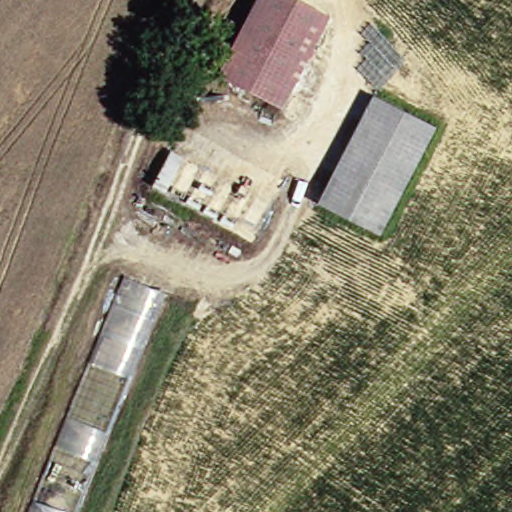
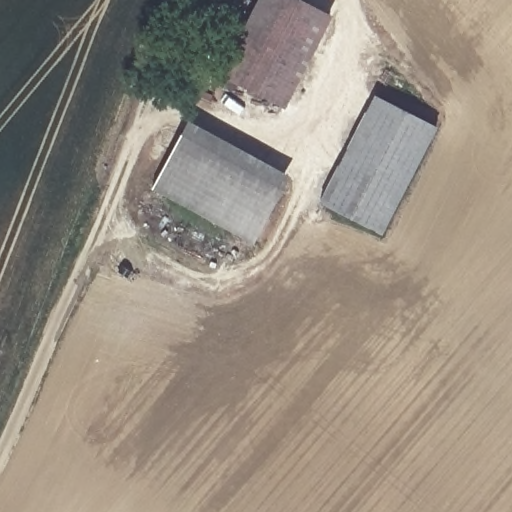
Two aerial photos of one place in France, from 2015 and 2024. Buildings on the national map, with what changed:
unchanged [(226,70),(267,0),(302,0),(338,22),(286,106),(226,70)]
unchanged [(385,236),(328,200),(383,95),(440,132),(385,236)]
new [(188,124),(289,179),(253,245),(152,190),(188,124)]
demolished [(161,184),(177,150),(275,202),(255,234),(161,184)]
demolished [(172,295),(84,512),(38,512),(131,277),(172,295)]

